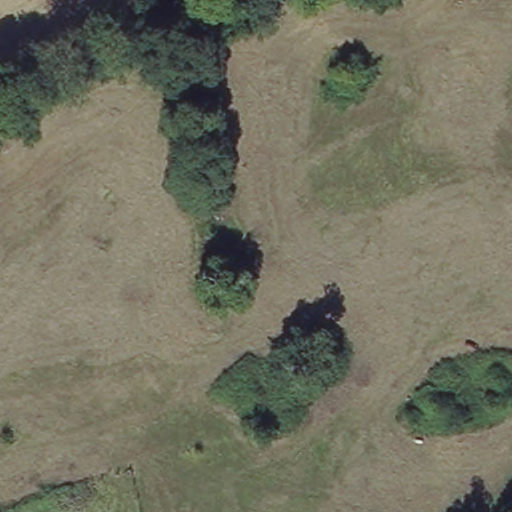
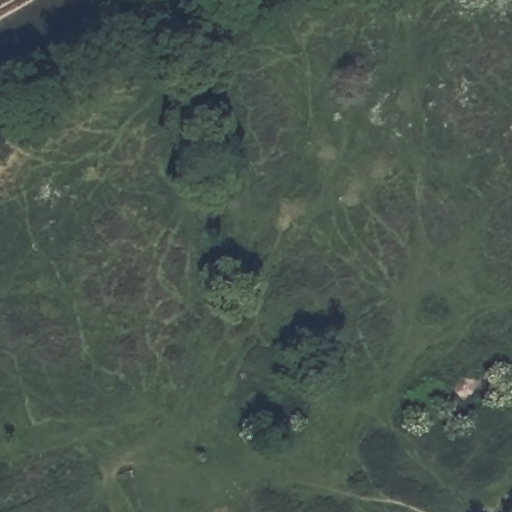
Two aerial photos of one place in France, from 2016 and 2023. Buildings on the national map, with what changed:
[]

